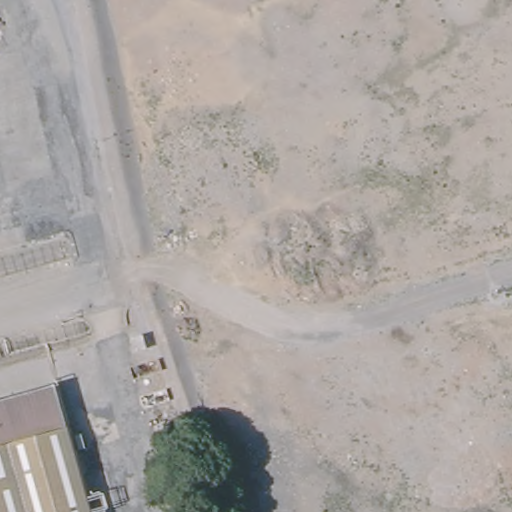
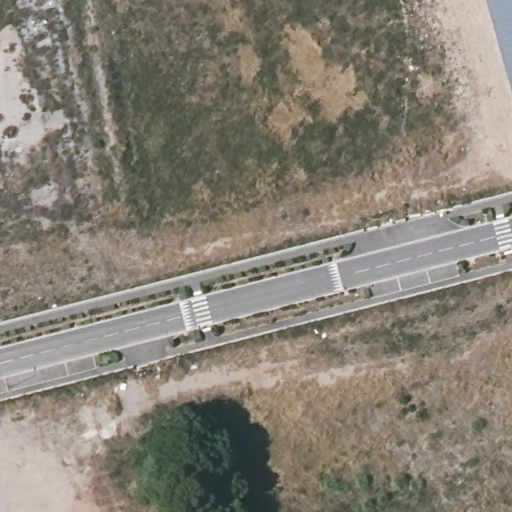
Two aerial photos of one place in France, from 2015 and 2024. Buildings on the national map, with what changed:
new [(512,0),(512,76),(491,0),(512,0)]
demolished [(47,382),(83,512),(0,512),(0,396),(47,382)]

